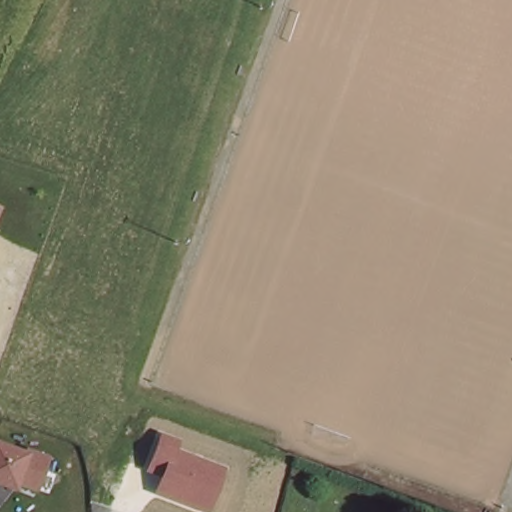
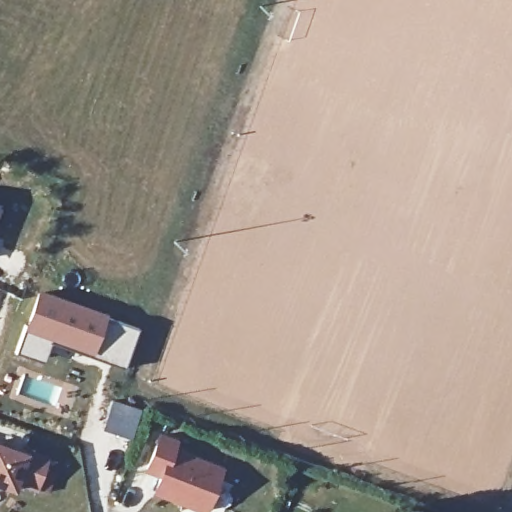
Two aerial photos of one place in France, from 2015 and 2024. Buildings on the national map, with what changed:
unchanged [(0,206),(2,207),(0,211),(0,206)]
new [(51,342),(42,361),(17,352),(39,289),(108,313),(106,317),(137,329),(122,367),(51,342)]
unchanged [(179,440),(175,452),(223,470),(208,512),(202,512),(152,493),(158,478),(143,472),(159,432),(179,440)]
unchanged [(0,484),(0,439),(49,456),(37,494),(0,484)]

